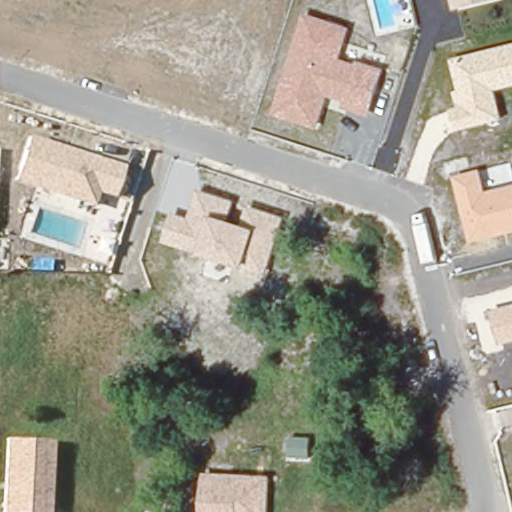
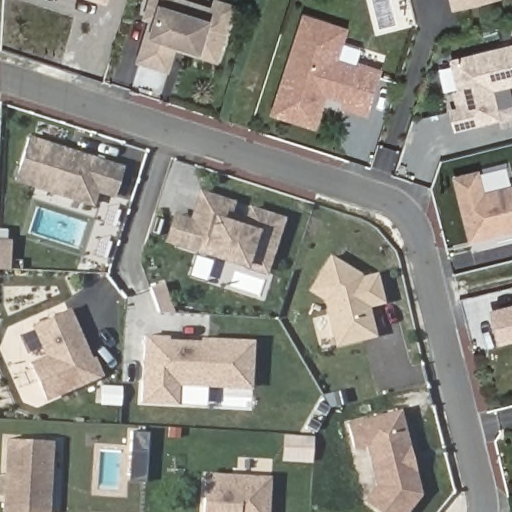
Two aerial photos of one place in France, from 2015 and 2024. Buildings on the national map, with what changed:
new [(100,0),(111,0),(110,3),(100,0)]
new [(139,61),(151,20),(145,19),(151,0),(196,0),(215,5),(216,0),(223,0),(239,4),(221,63),(179,49),(172,71),(139,61)]
unchanged [(451,0),(495,0),(454,11),(451,0)]
unchanged [(342,59),(357,64),(357,60),(385,68),(369,118),(344,109),(347,102),(328,96),(319,129),(271,114),(305,13),(352,28),(342,59)]
unchanged [(496,90),(504,120),(457,131),(451,109),(458,107),(454,91),(458,90),(450,59),(512,43),(512,86),(496,90)]
unchanged [(114,198),(99,194),(94,207),(15,180),(30,134),(125,165),(114,198)]
unchanged [(472,244),(455,177),(482,169),(487,192),(512,185),(512,233),(472,244)]
unchanged [(235,200),(230,219),(243,223),(249,204),(287,217),(267,275),(164,242),(174,212),(190,217),(200,189),(235,200)]
new [(10,271),(0,270),(0,239),(12,240),(10,271)]
new [(336,347),(324,300),(308,290),(330,254),(361,272),(361,275),(377,272),(385,303),(369,307),(377,337),(336,347)]
unchanged [(499,346),(490,310),(512,305),(512,342),(499,346)]
new [(103,376),(47,401),(31,362),(45,355),(32,325),(70,308),(92,358),(96,356),(103,376)]
new [(236,389),(182,386),(181,407),(147,404),(150,338),(174,339),(174,346),(208,347),(209,341),(257,343),(256,372),(255,389),(236,389)]
new [(347,423),(401,409),(422,494),(408,512),(379,512),(365,499),(376,486),(366,447),(354,449),(347,423)]
new [(313,462),(283,461),(284,435),(314,436),(313,462)]
unchanged [(51,512),(3,512),(6,439),(54,441),(51,512)]
unchanged [(270,512),(202,512),(204,473),(271,476),(270,512)]

